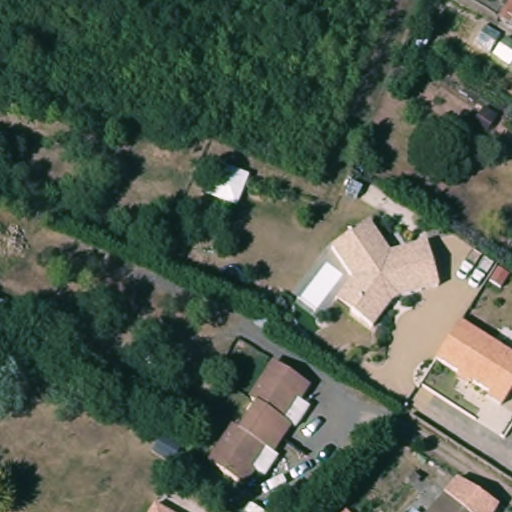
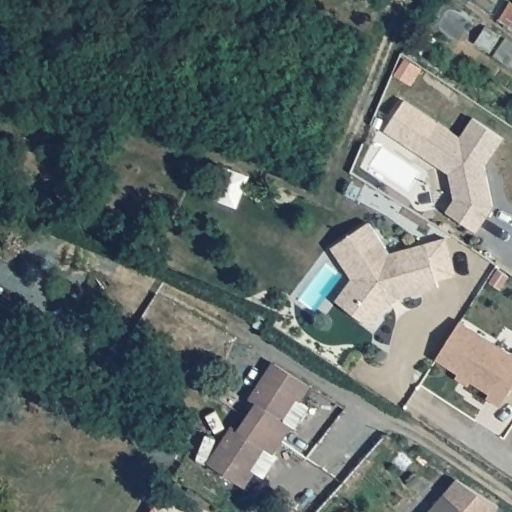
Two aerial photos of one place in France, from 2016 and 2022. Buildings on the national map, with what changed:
unchanged [(512,5),(512,26),(501,19),(512,5)]
new [(437,121),(460,136),(472,117),(503,137),(485,165),(492,206),(476,231),(446,211),(454,199),(449,173),(417,152),(437,121)]
unchanged [(252,171),(240,204),(204,191),(216,158),(252,171)]
unchanged [(348,277),(328,247),(367,220),(391,251),(427,242),(440,285),(395,297),(371,330),(335,298),(348,277)]
unchanged [(512,390),(503,404),(488,395),(490,388),(437,357),(461,315),(512,346),(512,390)]
unchanged [(313,383),(304,399),(297,396),(285,419),(298,426),(290,442),(257,424),(265,410),(258,405),(280,364),(313,383)]
unchanged [(280,459),(266,451),(260,464),(255,471),(262,475),(252,492),(241,486),(219,473),(240,435),(249,439),(257,424),(290,442),(280,459)]
unchanged [(501,505),(498,512),(464,512),(444,495),(462,474),(501,505)]
unchanged [(430,512),(444,495),(465,512),(430,512)]
unchanged [(168,512),(151,512),(155,505),(168,512)]

